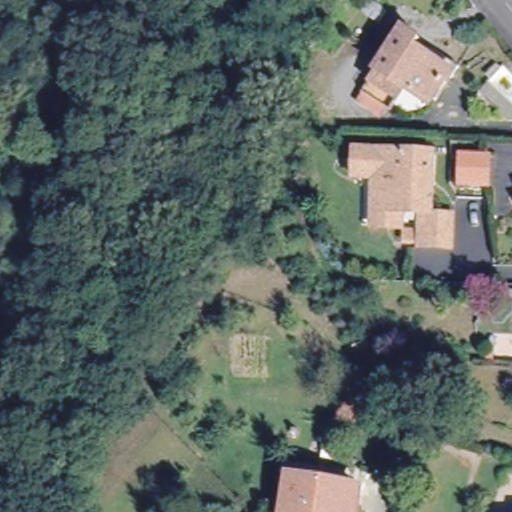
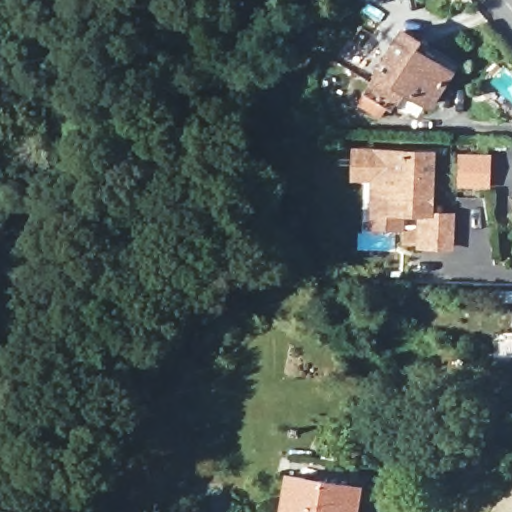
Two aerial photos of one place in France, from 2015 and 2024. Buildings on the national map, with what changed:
unchanged [(361,11),(369,0),(371,0),(387,10),(377,23),(361,11)]
unchanged [(428,94),(405,79),(392,99),(362,80),(401,19),(455,52),(428,94)]
unchanged [(377,226),(377,211),(378,177),(357,177),(357,175),(358,175),(359,154),(357,153),(357,151),(435,153),(434,215),(456,215),(455,246),(425,245),(425,212),(406,212),(405,227),(377,226)]
unchanged [(488,154),(487,185),(457,184),(458,152),(488,154)]
unchanged [(357,486),(353,512),(280,512),(286,475),(357,486)]

